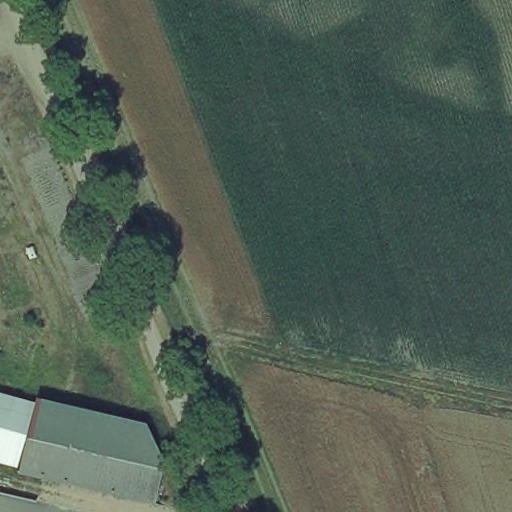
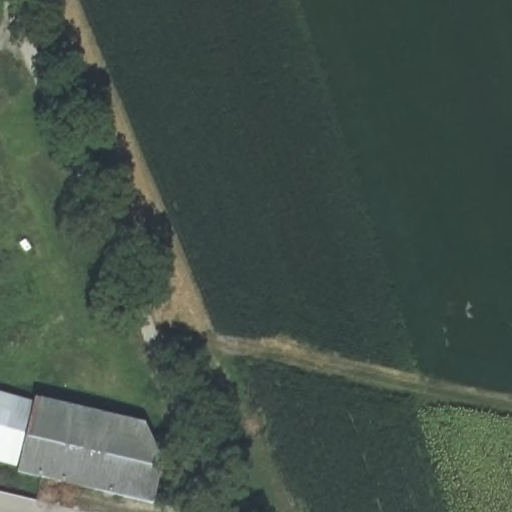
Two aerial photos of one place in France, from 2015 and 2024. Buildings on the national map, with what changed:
unchanged [(23,465),(0,460),(0,388),(35,396),(23,465)]
unchanged [(23,465),(35,396),(175,427),(157,502),(22,473),(23,465)]

